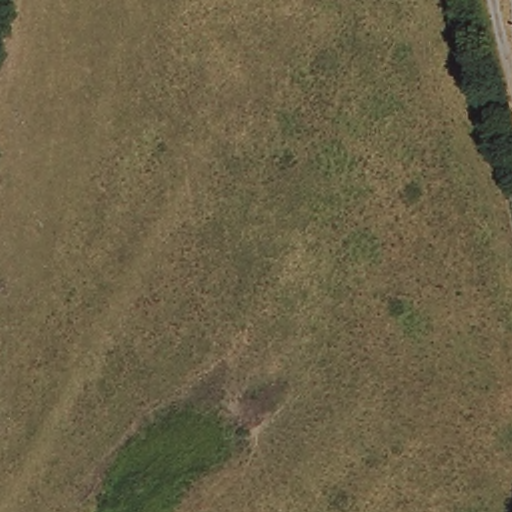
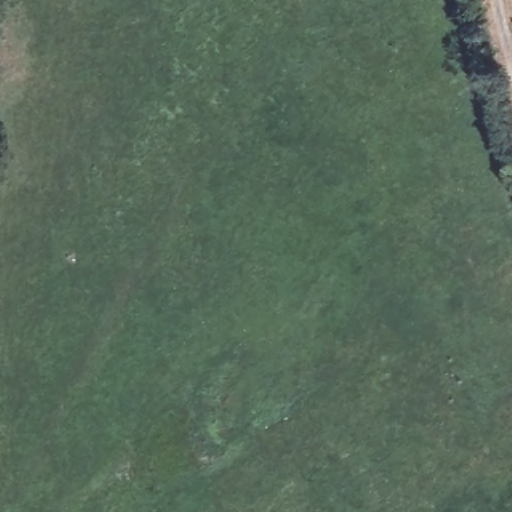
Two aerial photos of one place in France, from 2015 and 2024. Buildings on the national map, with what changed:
[]

